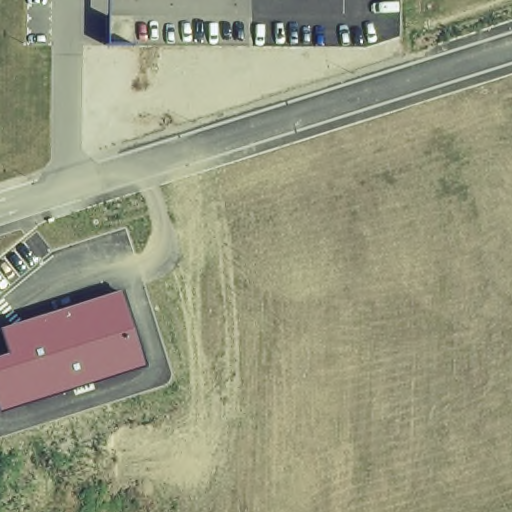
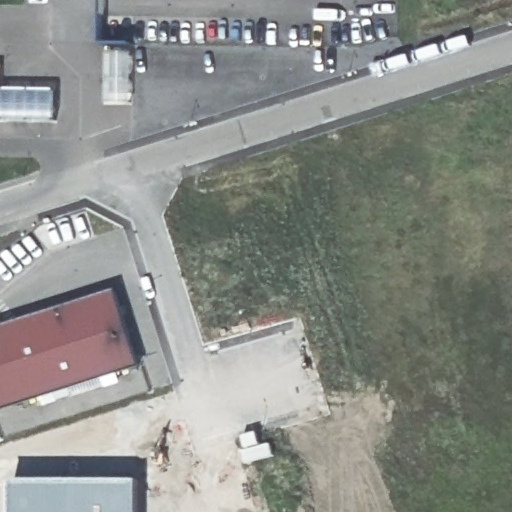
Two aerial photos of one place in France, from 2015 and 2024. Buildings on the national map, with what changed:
new [(6,63),(4,88),(58,91),(59,121),(0,122),(0,63),(6,63)]
unchanged [(143,364),(0,410),(0,355),(6,353),(0,337),(0,329),(116,290),(143,364)]
new [(145,512),(13,512),(13,483),(145,483),(145,512)]

